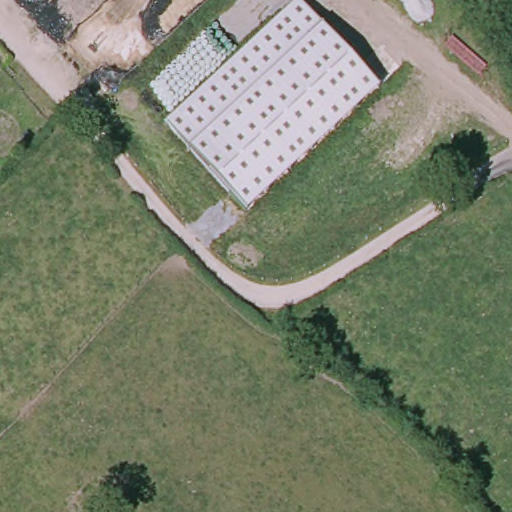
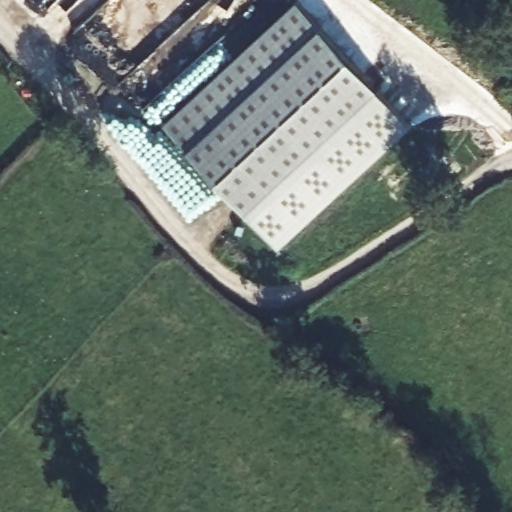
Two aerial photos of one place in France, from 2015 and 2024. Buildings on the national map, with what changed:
unchanged [(321,26),(378,90),(246,211),(190,150),(166,123),(296,1),(321,26)]
new [(410,127),(280,248),(246,211),(378,90),(410,127)]

